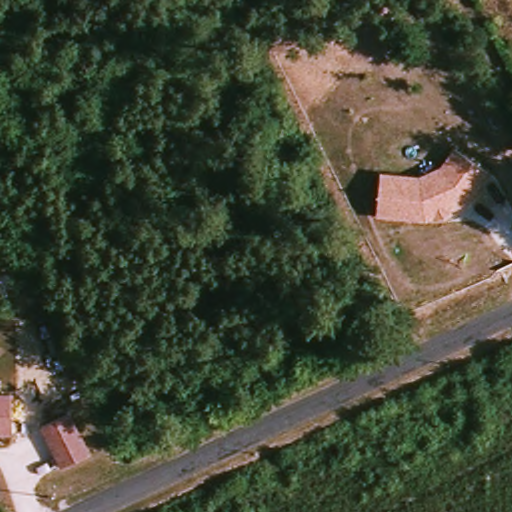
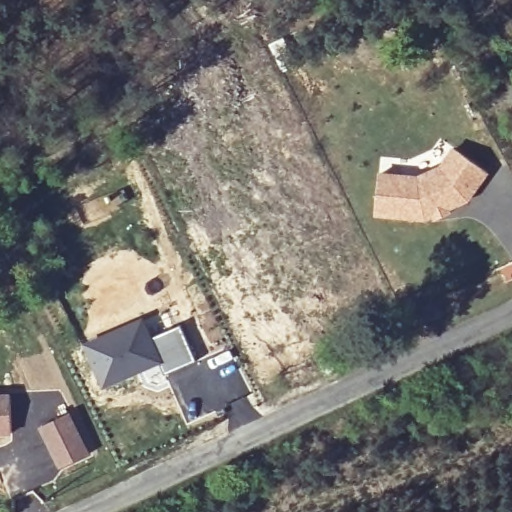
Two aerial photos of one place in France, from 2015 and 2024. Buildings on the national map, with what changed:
unchanged [(418,176),(442,165),(453,147),(490,172),(467,204),(427,220),(376,217),(379,173),(418,176)]
new [(103,388),(84,344),(144,317),(151,336),(182,324),(197,361),(165,374),(161,363),(103,388)]
unchanged [(11,394),(11,434),(0,434),(0,394),(11,394)]
unchanged [(91,455),(61,470),(40,426),(69,411),(91,455)]

